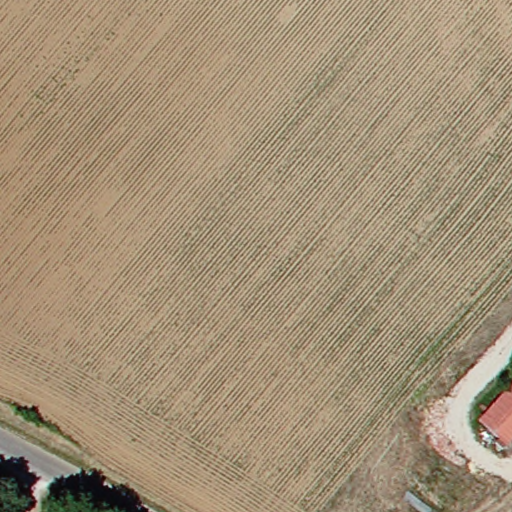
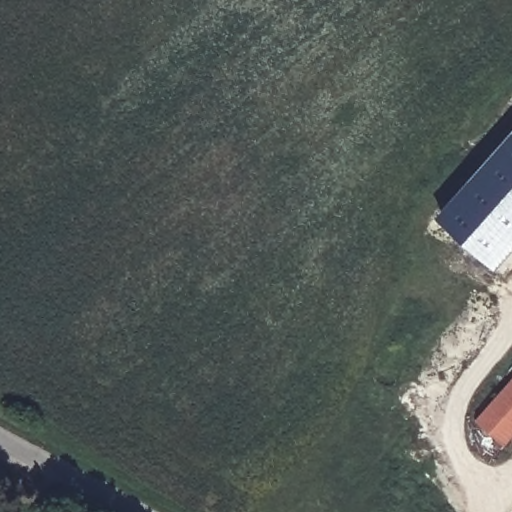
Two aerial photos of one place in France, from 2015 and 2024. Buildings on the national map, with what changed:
new [(512,249),(504,259),(452,213),(512,146),(512,249)]
new [(445,220),(452,213),(504,259),(512,249),(512,260),(502,271),(445,220)]
unchanged [(512,446),(490,426),(512,401),(512,446)]

